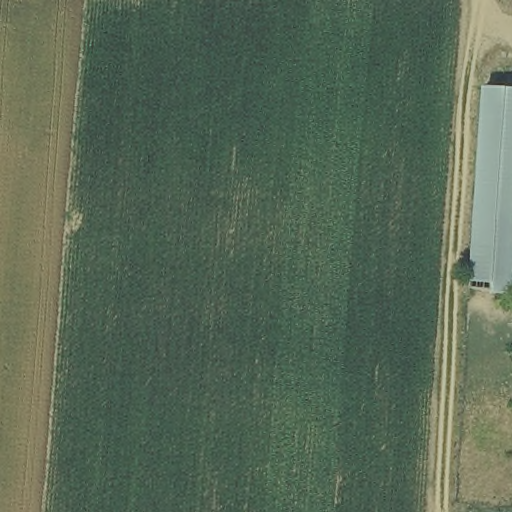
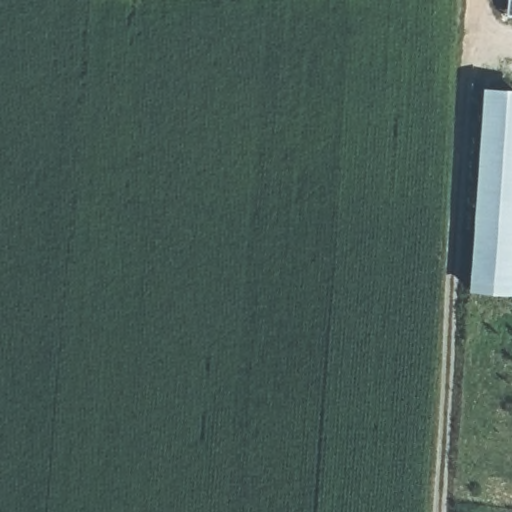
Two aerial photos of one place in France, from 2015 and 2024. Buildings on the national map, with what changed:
unchanged [(483,93),(512,95),(512,210),(506,294),(471,293),(483,93)]

